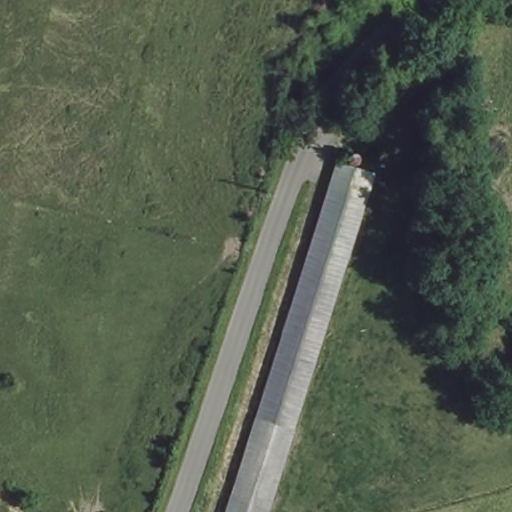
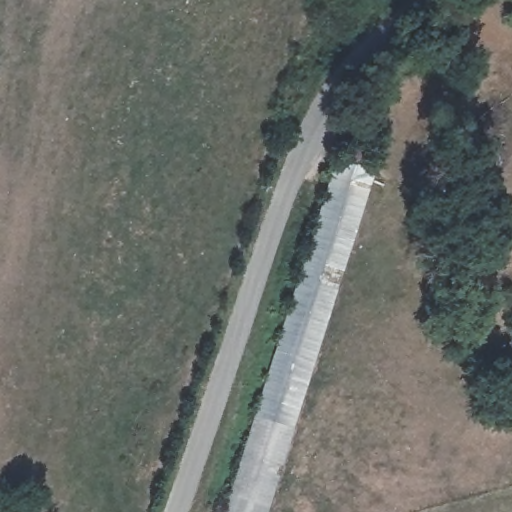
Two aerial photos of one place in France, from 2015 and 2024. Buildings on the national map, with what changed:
unchanged [(334,158),(371,173),(360,211),(313,359),(266,507),(225,492),(334,158)]
unchanged [(264,512),(219,512),(225,492),(266,507),(264,512)]

